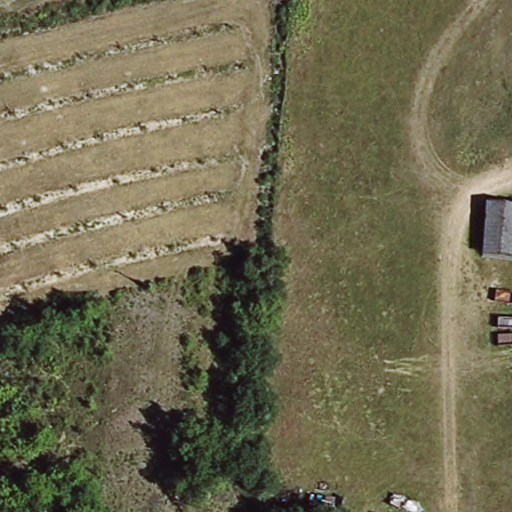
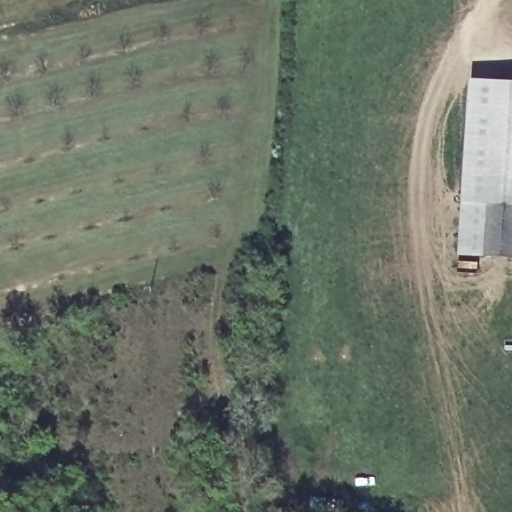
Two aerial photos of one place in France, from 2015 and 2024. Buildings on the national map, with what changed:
unchanged [(4,0),(0,1),(0,0),(4,0)]
new [(470,80),(512,83),(512,260),(458,257),(470,80)]
demolished [(487,203),(512,205),(512,260),(486,259),(487,203)]

